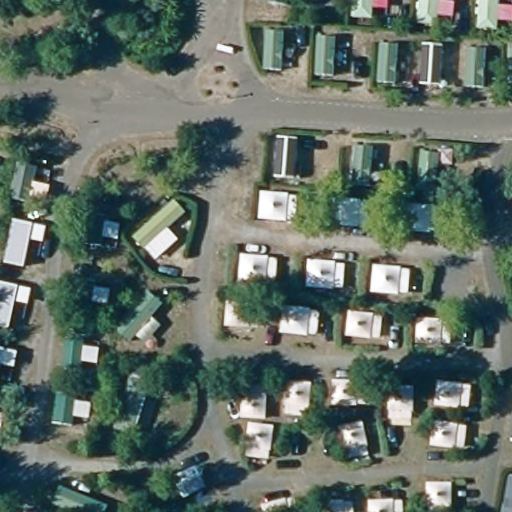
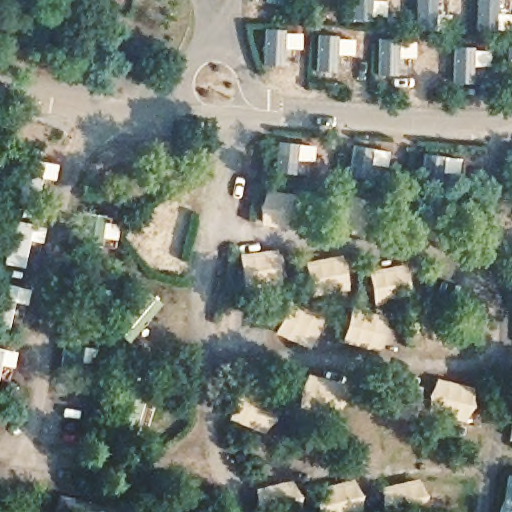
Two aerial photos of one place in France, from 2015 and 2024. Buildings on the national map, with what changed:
unchanged [(97,0),(117,0),(116,4),(97,0)]

